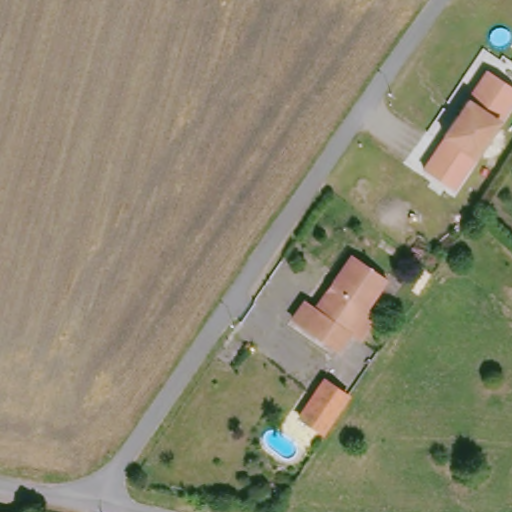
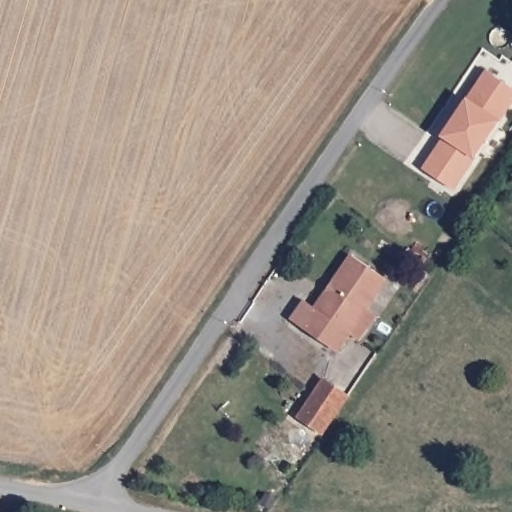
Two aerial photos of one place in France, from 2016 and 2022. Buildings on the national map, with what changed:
unchanged [(422,169),(445,136),(442,134),(467,99),(488,69),(491,73),(512,86),(512,101),(452,189),(422,169)]
unchanged [(358,339),(349,332),(338,349),(292,318),(304,300),(314,307),(350,254),(385,277),(366,305),(375,313),(358,339)]
unchanged [(324,379),(348,395),(324,430),(324,431),(300,415),(324,379)]

